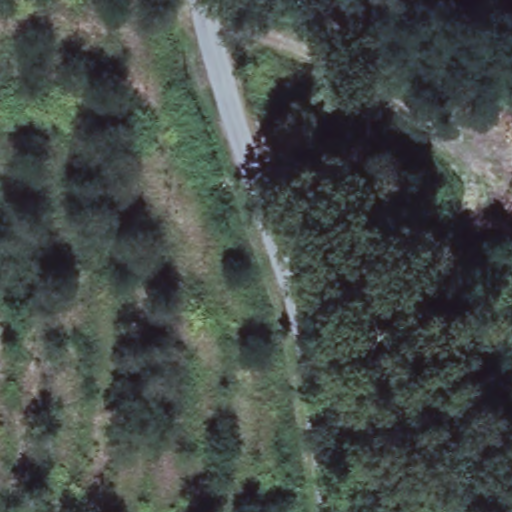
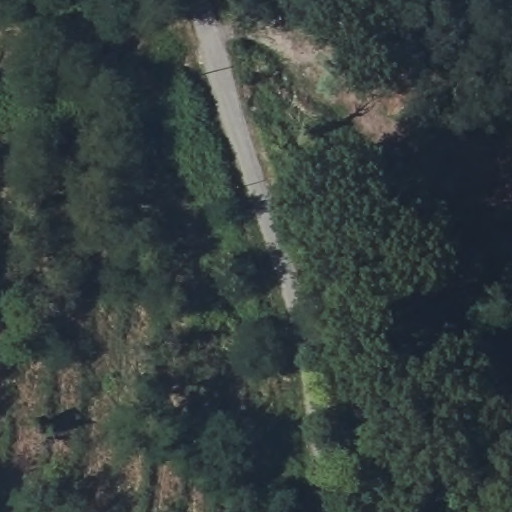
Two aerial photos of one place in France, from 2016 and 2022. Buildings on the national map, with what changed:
unchanged [(267,73),(250,81),(242,59),(259,54),(267,73)]

